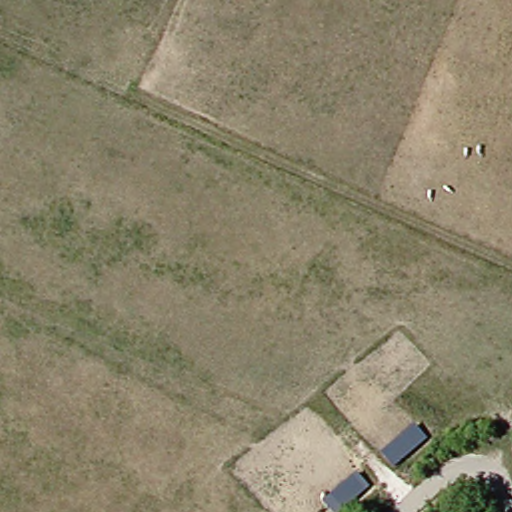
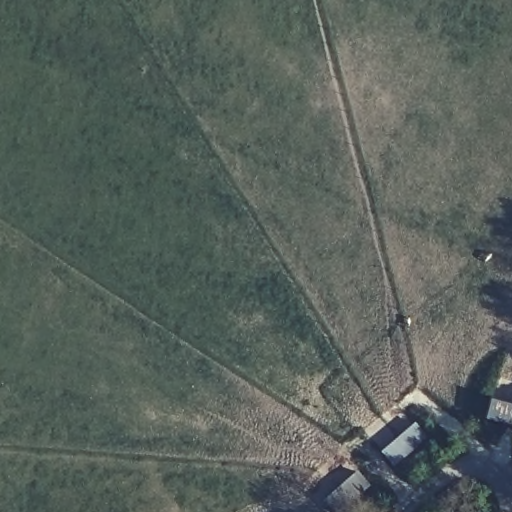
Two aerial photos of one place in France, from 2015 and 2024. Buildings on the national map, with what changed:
[]

